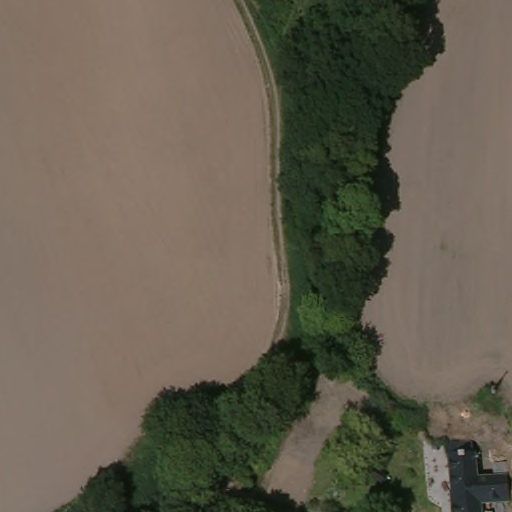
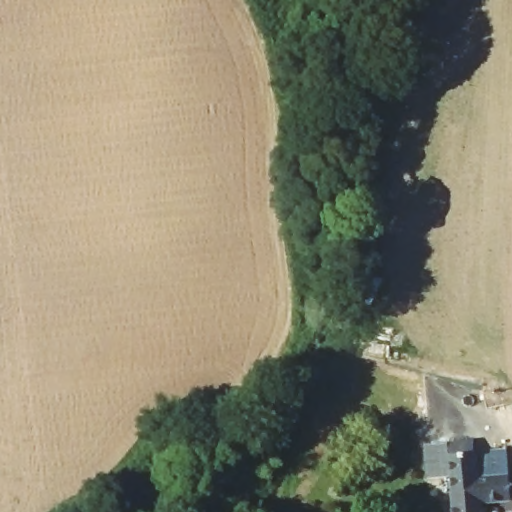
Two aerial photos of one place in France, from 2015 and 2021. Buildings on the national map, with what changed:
unchanged [(479,480),(480,512),(449,512),(449,456),(476,455),(476,480),(479,480)]

